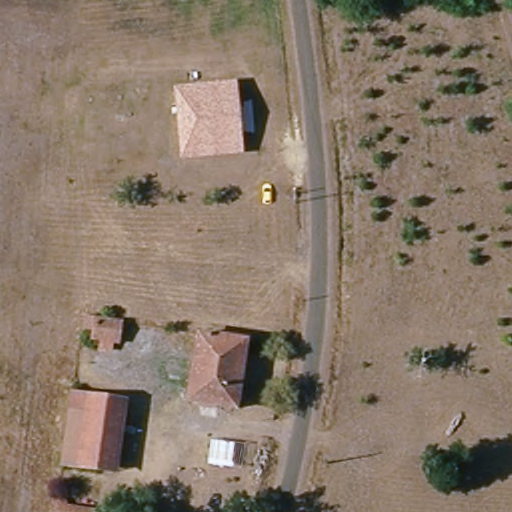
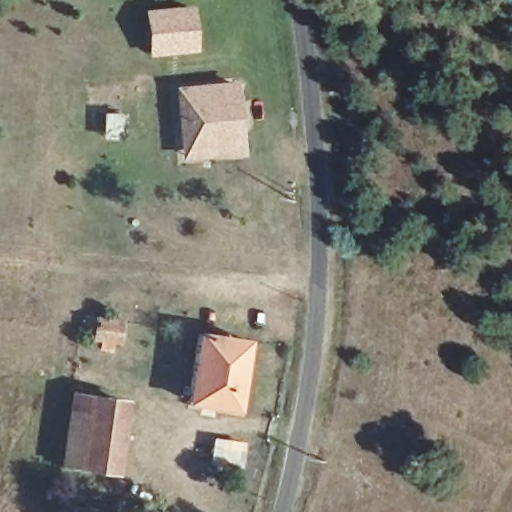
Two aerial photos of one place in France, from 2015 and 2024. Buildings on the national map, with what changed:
new [(199,53),(148,57),(144,12),(192,6),(199,53)]
unchanged [(243,154),(181,159),(172,87),(237,81),(243,154)]
unchanged [(125,331),(119,355),(81,346),(86,321),(125,331)]
unchanged [(234,405),(191,394),(205,336),(249,345),(234,405)]
unchanged [(110,472),(94,468),(66,461),(82,391),(126,402),(110,472)]

